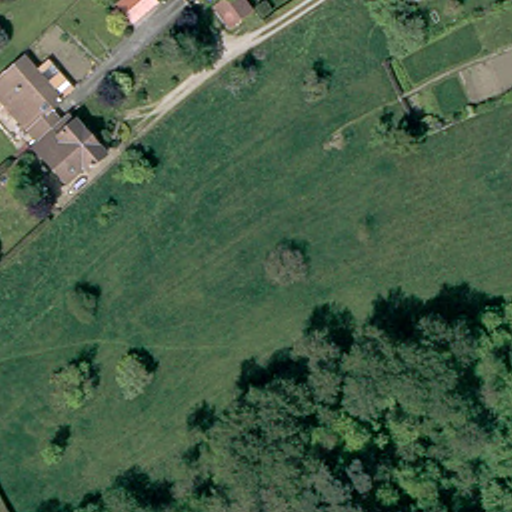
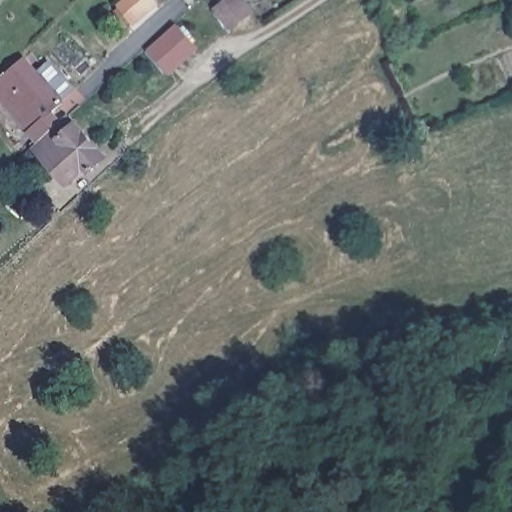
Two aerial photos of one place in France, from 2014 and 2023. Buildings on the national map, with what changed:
new [(156,3),(134,21),(120,2),(122,0),(154,0),(156,3)]
unchanged [(229,27),(215,9),(227,0),(242,0),(250,12),(229,27)]
new [(169,75),(147,50),(177,23),(199,47),(169,75)]
unchanged [(30,70),(42,61),(66,90),(56,98),(60,102),(48,111),(57,122),(35,142),(0,101),(0,76),(20,58),(30,70)]
unchanged [(60,120),(98,160),(81,176),(76,171),(58,186),(25,150),(35,142),(57,122),(60,120)]

